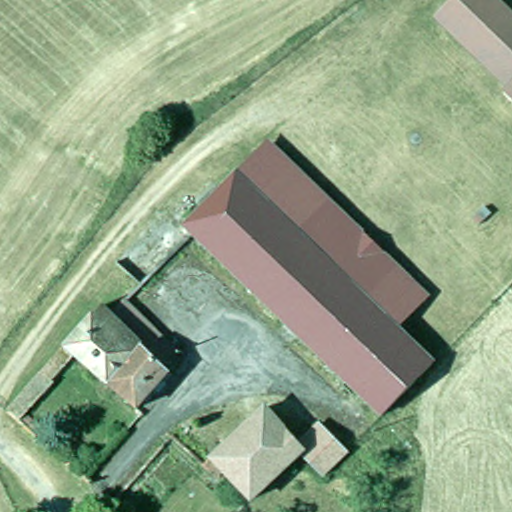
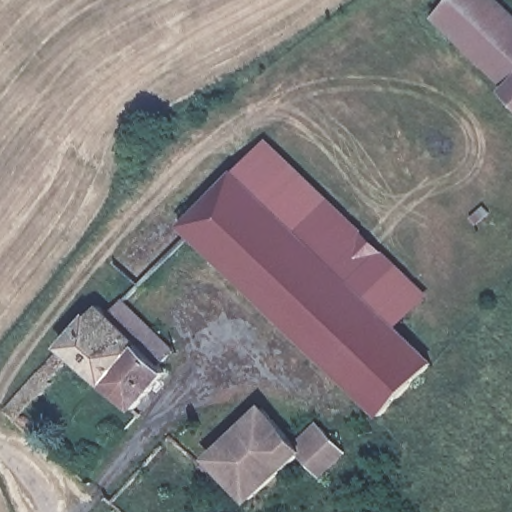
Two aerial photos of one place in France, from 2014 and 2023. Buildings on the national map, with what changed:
unchanged [(504,86),(428,18),(445,0),(492,0),(512,19),(512,108),(497,94),(504,86)]
unchanged [(229,179),(257,150),(415,304),(389,333),(229,179)]
unchanged [(377,420),(187,239),(179,230),(229,179),(389,333),(426,368),(377,420)]
unchanged [(60,341),(99,308),(174,367),(130,406),(60,341)]
unchanged [(2,413),(60,348),(71,357),(51,379),(54,382),(39,399),(36,396),(12,422),(2,413)]
unchanged [(201,466),(208,460),(262,408),(298,448),(298,451),(288,460),(244,500),(216,469),(210,475),(201,466)]
unchanged [(298,451),(298,448),(322,426),(341,449),(318,473),(298,451)]

